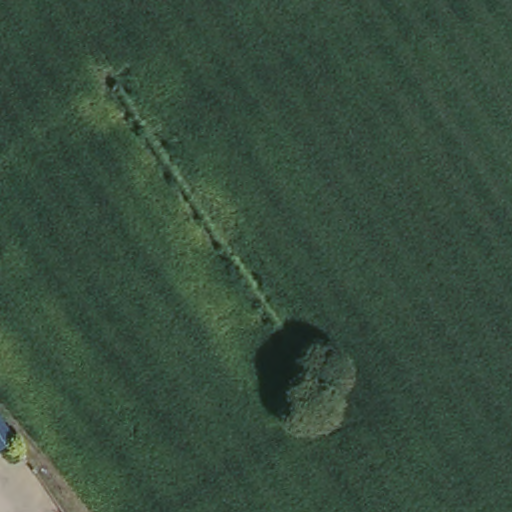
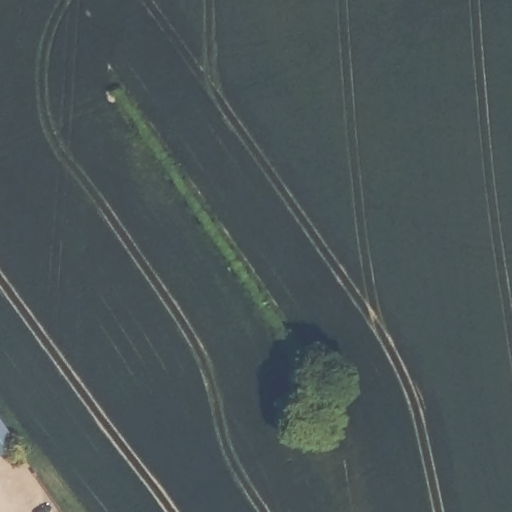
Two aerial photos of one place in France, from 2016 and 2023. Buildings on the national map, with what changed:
unchanged [(0,453),(0,414),(19,442),(0,453)]

